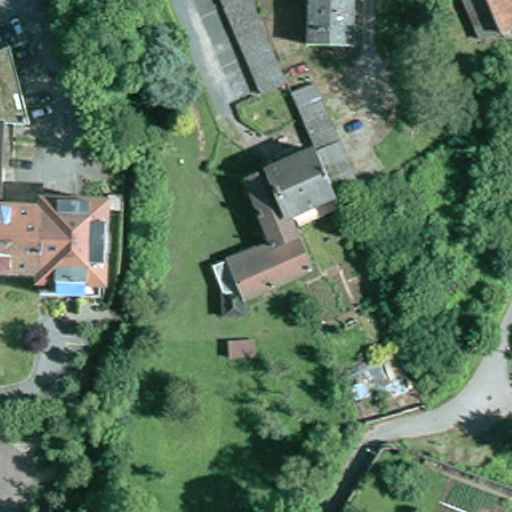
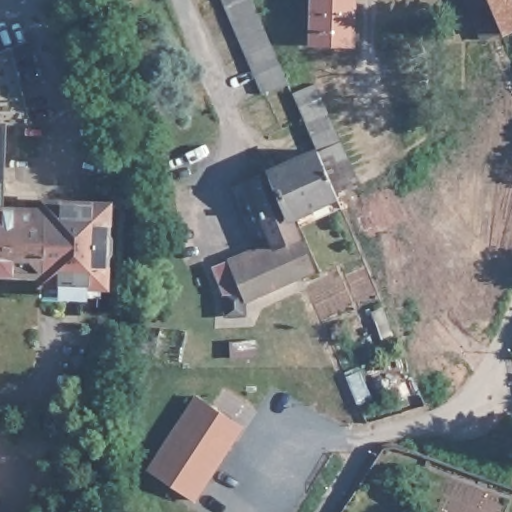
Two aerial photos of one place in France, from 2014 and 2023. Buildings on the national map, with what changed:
unchanged [(263,92),(223,0),(253,0),(289,82),(263,92)]
unchanged [(315,49),(315,0),(360,0),(359,50),(315,49)]
unchanged [(467,0),(488,0),(503,34),(485,42),(467,0)]
unchanged [(512,0),(512,32),(504,36),(503,34),(488,0),(512,0)]
unchanged [(12,123),(0,123),(0,54),(17,47),(20,45),(40,122),(37,123),(12,123)]
unchanged [(316,81),(357,182),(335,192),(334,190),(316,149),(292,91),(316,81)]
unchanged [(12,123),(7,207),(52,209),(47,274),(0,272),(0,123),(12,123)]
unchanged [(272,169),(316,149),(334,190),(335,192),(335,196),(290,215),(272,169)]
unchanged [(312,271),(242,297),(243,315),(222,316),(222,295),(212,267),(270,244),(247,179),(270,169),(272,169),(290,215),(292,219),(312,271)]
unchanged [(116,204),(112,284),(47,283),(47,274),(52,209),(52,202),(116,204)]
new [(237,422),(244,427),(236,439),(196,500),(150,469),(198,397),(237,422)]

